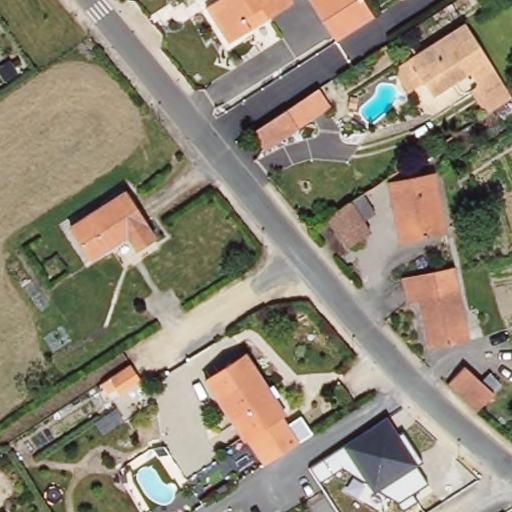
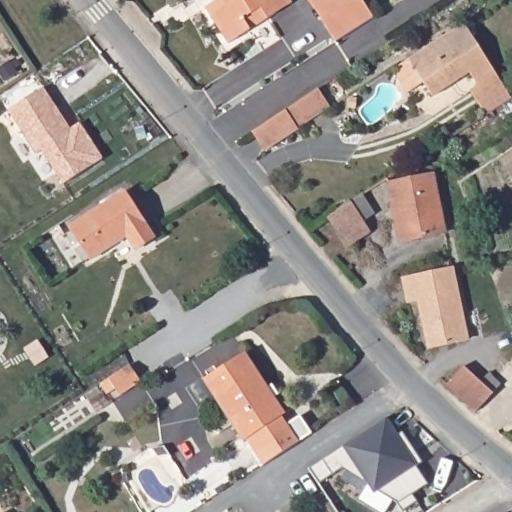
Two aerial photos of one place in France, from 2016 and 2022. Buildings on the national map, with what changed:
unchanged [(208,9),(221,0),(291,0),(292,2),(267,19),(250,30),(230,43),(208,9)]
new [(336,41),(310,0),(363,0),(373,16),(336,41)]
demolished [(342,54),(330,32),(366,8),(380,29),(342,54)]
unchanged [(397,76),(399,65),(408,59),(462,24),(512,99),(493,111),(485,116),(469,91),(473,88),(475,84),(468,73),(433,96),(423,82),(408,92),(397,76)]
new [(71,129),(80,122),(102,157),(62,182),(41,151),(36,154),(9,110),(44,87),(71,129)]
unchanged [(264,154),(249,132),(264,123),(283,111),(317,90),(330,109),(297,130),(299,132),(264,154)]
unchanged [(445,234),(400,238),(393,182),(440,177),(445,234)]
unchanged [(155,237),(131,252),(123,241),(91,261),(70,229),(124,194),(155,237)]
unchanged [(371,230),(343,237),(335,211),(360,195),(371,230)]
unchanged [(468,346),(427,351),(421,302),(409,303),(407,286),(406,280),(433,276),(457,273),(468,346)]
unchanged [(284,411),(246,436),(207,379),(245,355),(284,411)]
unchanged [(494,391),(478,408),(452,382),(467,366),(494,391)]
unchanged [(104,392),(112,387),(133,373),(136,378),(144,390),(142,391),(122,403),(119,397),(110,402),(104,392)]
unchanged [(265,465),(246,436),(284,411),(290,423),(300,418),(312,435),(265,465)]
unchanged [(342,447),(388,420),(399,436),(403,433),(420,462),(416,466),(427,484),(411,495),(417,502),(402,510),(398,502),(380,491),(375,493),(367,482),(342,467),(320,482),(311,468),(342,447)]

